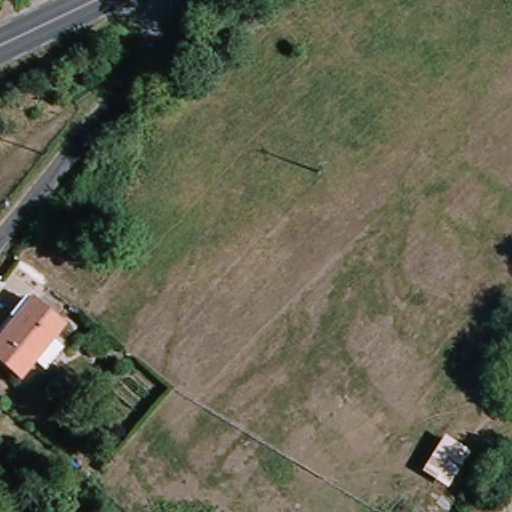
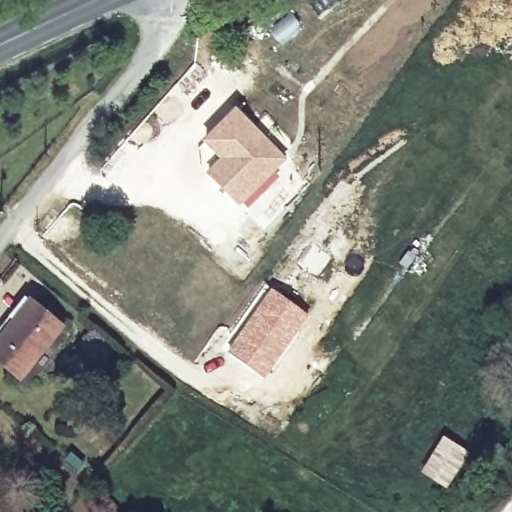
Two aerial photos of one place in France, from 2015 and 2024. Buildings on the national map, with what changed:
new [(221,160),(204,143),(236,109),(287,160),(240,207),(207,174),(221,160)]
new [(271,288),(310,315),(265,380),(226,352),(271,288)]
unchanged [(28,379),(0,357),(44,303),(72,325),(28,379)]
unchanged [(472,456),(447,495),(421,476),(446,437),(472,456)]

